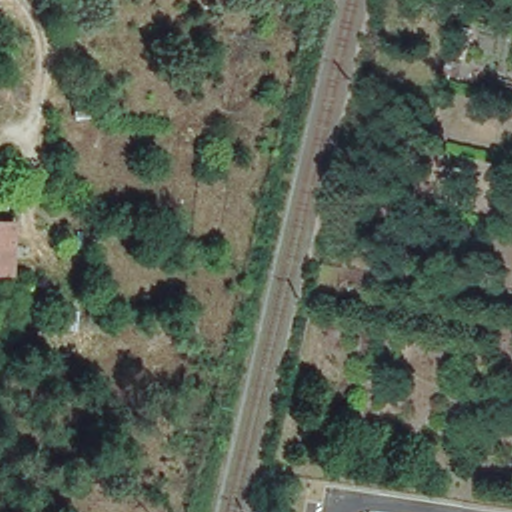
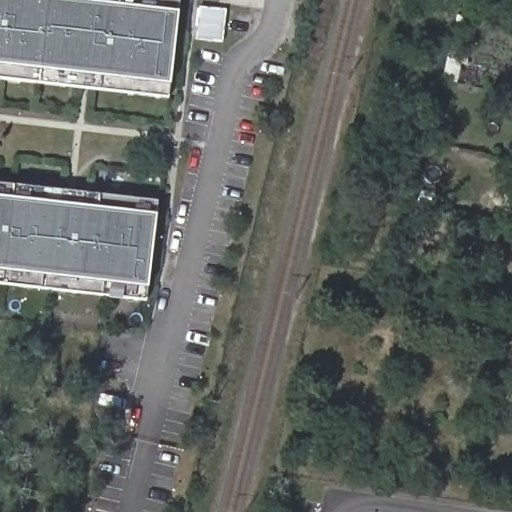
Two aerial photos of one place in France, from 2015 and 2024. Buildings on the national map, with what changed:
new [(179,12),(171,84),(169,96),(0,77),(0,0),(179,0),(179,12)]
demolished [(89,117),(75,119),(70,96),(85,92),(89,117)]
new [(156,204),(156,216),(149,287),(147,300),(0,283),(0,185),(156,204)]
demolished [(0,274),(0,224),(4,224),(1,275),(0,274)]

